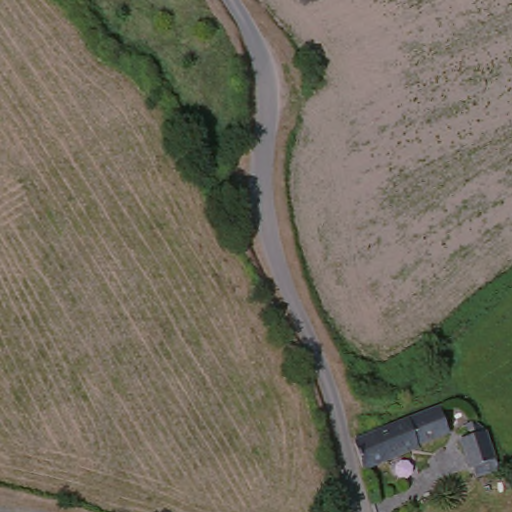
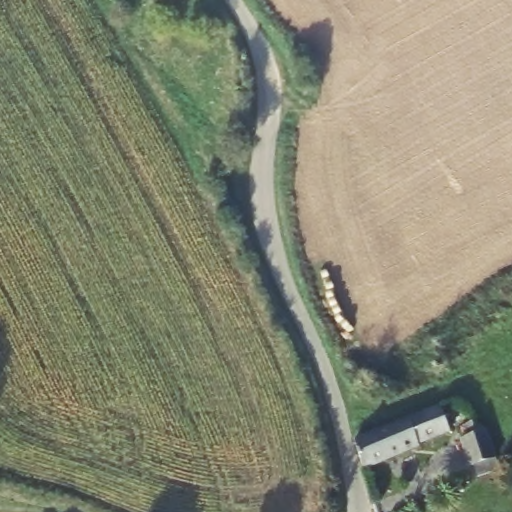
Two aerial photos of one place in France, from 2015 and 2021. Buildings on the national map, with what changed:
unchanged [(441,402),(441,404),(453,430),(441,435),(417,447),(404,419),(441,402)]
unchanged [(486,467),(486,465),(464,471),(456,442),(463,440),(459,423),(468,418),(483,431),(486,430),(491,427),(497,445),(503,462),(486,467)]
unchanged [(371,435),(404,419),(417,447),(362,474),(354,443),(371,435)]

